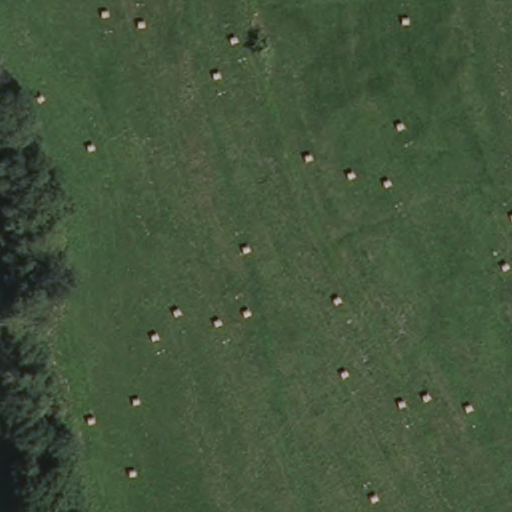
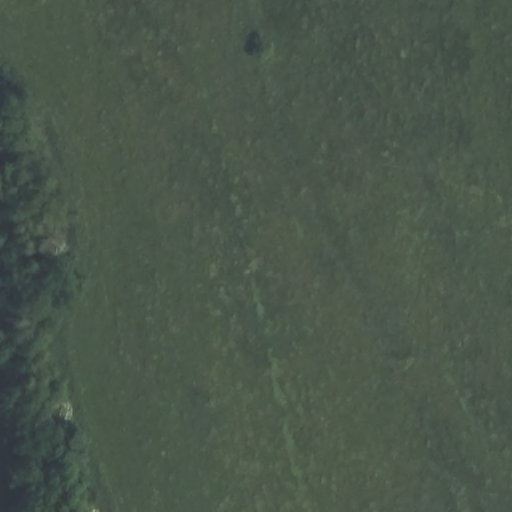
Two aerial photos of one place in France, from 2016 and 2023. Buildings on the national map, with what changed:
[]

